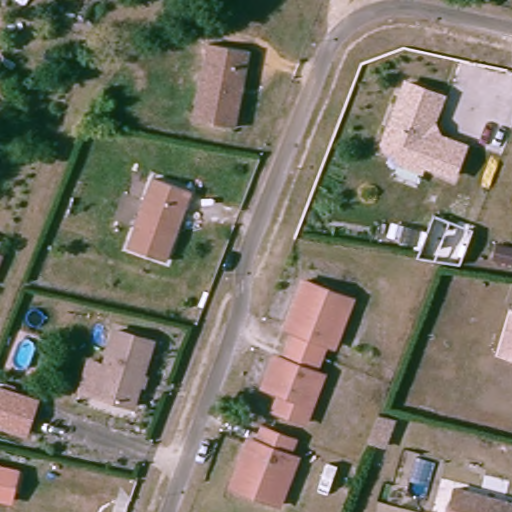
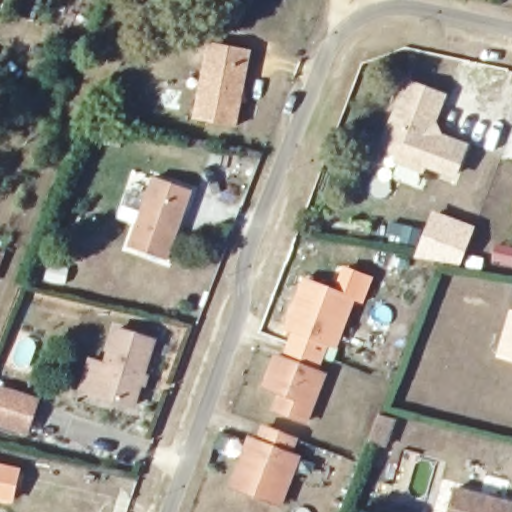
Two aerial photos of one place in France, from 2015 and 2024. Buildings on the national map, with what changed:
unchanged [(255,49),(240,125),(200,117),(214,41),(255,49)]
unchanged [(398,160),(400,153),(386,147),(384,142),(408,81),(443,95),(429,130),(466,145),(455,174),(423,161),(421,169),(398,160)]
unchanged [(189,186),(164,257),(127,243),(152,174),(189,186)]
new [(413,256),(432,210),(474,226),(460,265),(413,256)]
unchanged [(0,250),(6,252),(0,267),(0,250)]
unchanged [(316,385),(304,417),(272,405),(279,388),(263,380),(275,350),(283,353),(293,326),(285,322),(304,274),(352,292),(340,325),(333,340),(325,337),(314,365),(322,369),(316,385)]
unchanged [(97,357),(112,362),(123,326),(161,337),(141,403),(103,391),(88,386),(97,357)]
unchanged [(508,348),(512,336),(512,349),(508,348)]
unchanged [(25,430),(0,421),(0,384),(36,397),(25,430)]
unchanged [(375,410),(394,414),(383,441),(366,435),(375,410)]
unchanged [(240,486),(257,438),(266,442),(273,427),(303,439),(298,452),(306,455),(300,473),(287,505),(240,486)]
unchanged [(12,503),(0,501),(0,464),(20,469),(12,503)]
unchanged [(512,500),(512,512),(453,512),(460,486),(512,500)]

